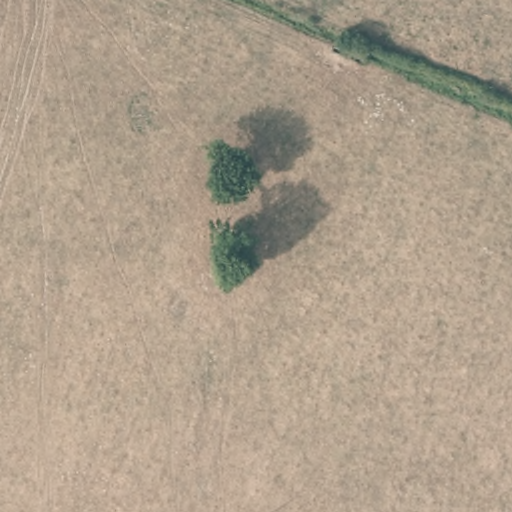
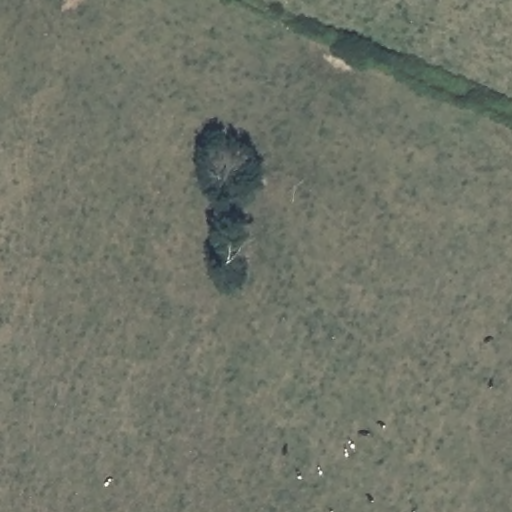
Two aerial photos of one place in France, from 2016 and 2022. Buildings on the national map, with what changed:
[]

